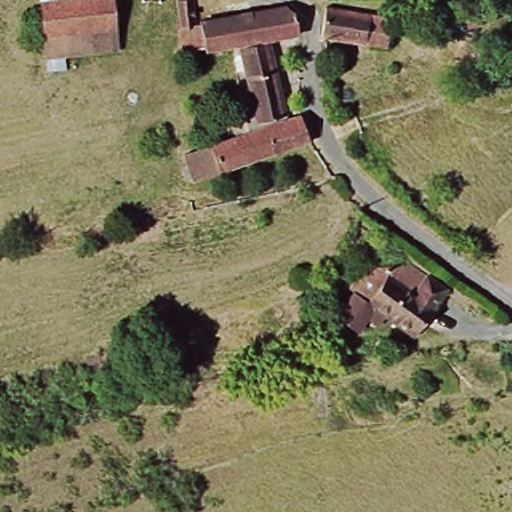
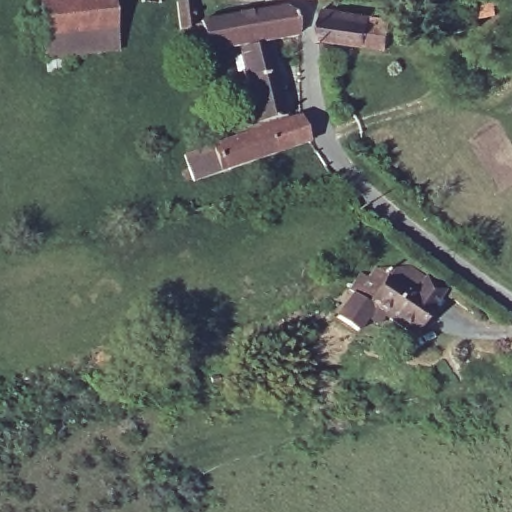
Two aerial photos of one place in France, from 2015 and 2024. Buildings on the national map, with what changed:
unchanged [(112,4),(42,9),(42,0),(111,0),(112,4)]
unchanged [(112,4),(115,56),(46,60),(42,9),(112,4)]
unchanged [(187,57),(179,6),(195,4),(200,29),(285,11),(295,18),(300,41),(275,45),(290,118),(258,127),(238,51),(187,57)]
unchanged [(395,28),(390,55),(321,43),(327,16),(395,28)]
unchanged [(185,159),(210,150),(260,132),(305,119),(315,144),(218,175),(193,183),(185,159)]
unchanged [(413,341),(374,313),(357,336),(340,322),(372,276),(417,277),(427,285),(443,299),(413,341)]

